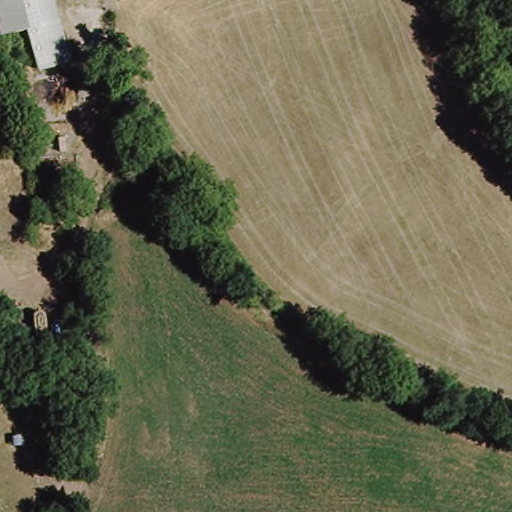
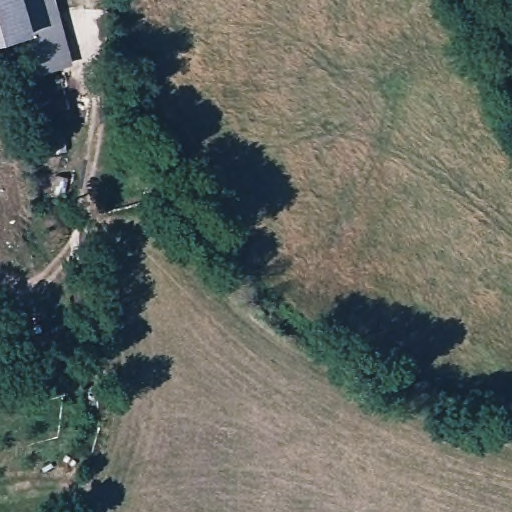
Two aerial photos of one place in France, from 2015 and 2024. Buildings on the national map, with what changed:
unchanged [(71,66),(43,75),(27,30),(0,38),(0,0),(52,0),(71,66)]

